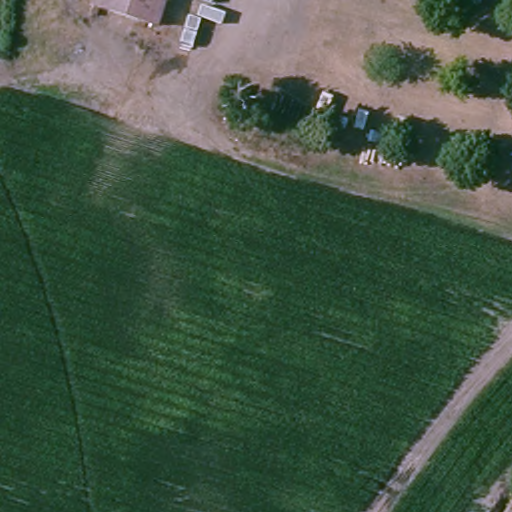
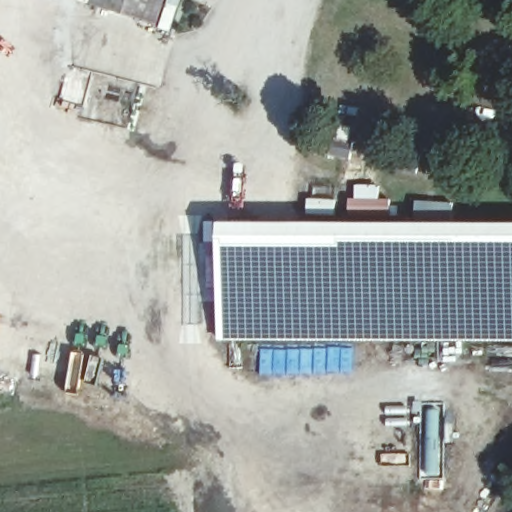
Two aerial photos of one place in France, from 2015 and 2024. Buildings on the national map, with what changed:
unchanged [(95,4),(96,0),(163,0),(155,26),(95,4)]
new [(512,225),(512,341),(218,341),(219,225),(512,225)]

